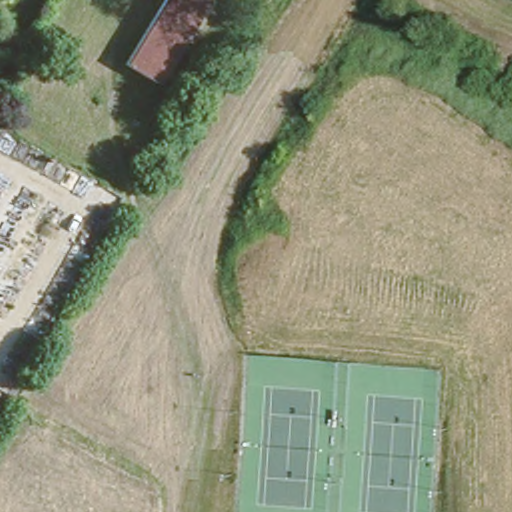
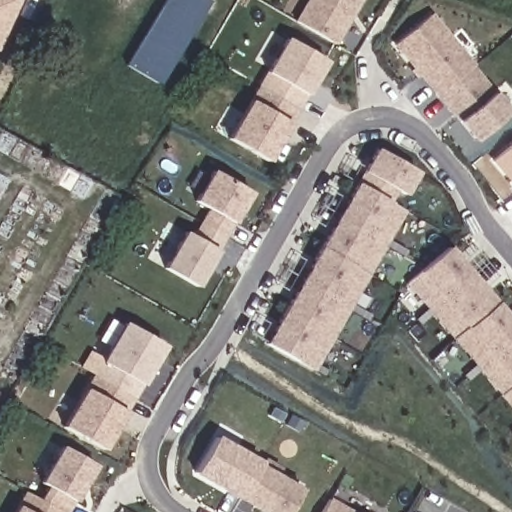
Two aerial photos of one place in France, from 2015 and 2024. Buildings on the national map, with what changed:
new [(0,44),(0,0),(19,0),(0,44)]
unchanged [(164,70),(137,53),(166,0),(203,0),(164,70)]
new [(341,44),(302,21),(315,0),(367,0),(341,44)]
new [(480,66),(446,96),(402,44),(436,15),(480,66)]
new [(304,109),(265,87),(293,38),(332,61),(304,109)]
new [(512,118),(484,141),(446,96),(478,68),(512,108),(512,118)]
new [(274,161),(235,139),(265,87),(304,109),(274,161)]
new [(320,370),(274,344),(386,150),(425,172),(412,194),(398,186),(391,198),(413,210),(320,370)]
new [(512,152),(512,173),(501,160),(512,152)]
new [(231,237),(208,224),(216,210),(201,202),(219,171),(256,193),(231,237)]
new [(231,237),(203,287),(171,269),(192,232),(200,237),(208,224),(231,237)]
new [(512,395),(416,282),(456,247),(512,312),(512,395)]
new [(139,398),(100,376),(130,324),(169,346),(139,398)]
new [(110,451),(71,428),(100,376),(139,398),(110,451)]
new [(266,465),(246,499),(201,473),(221,439),(266,465)]
new [(66,512),(49,502),(57,489),(48,485),(69,448),(101,466),(75,512),(66,512)]
new [(268,512),(246,499),(269,460),(286,470),(282,477),(306,491),(295,512),(268,512)]
new [(66,512),(23,512),(33,493),(66,512)]
new [(355,512),(328,512),(334,500),(355,512)]

